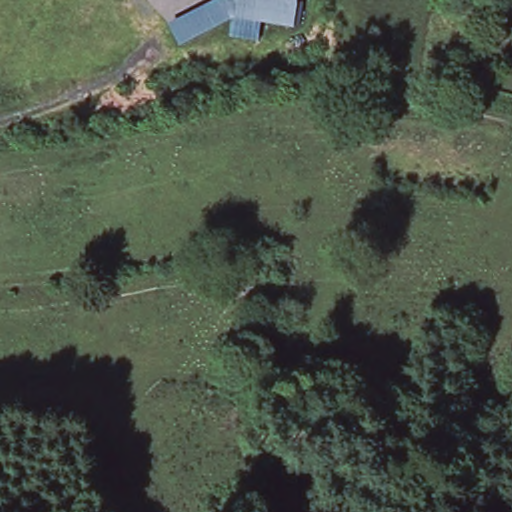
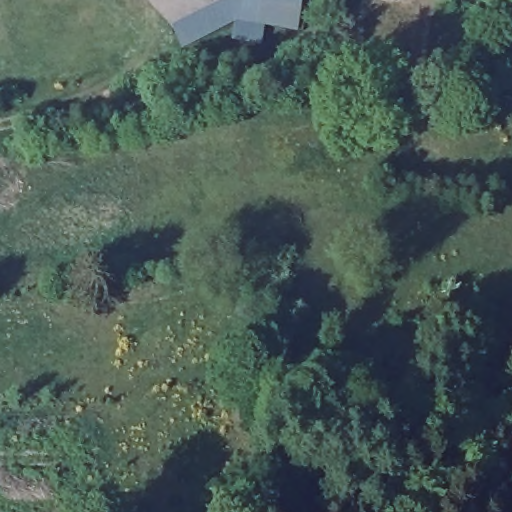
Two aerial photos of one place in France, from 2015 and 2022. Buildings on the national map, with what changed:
unchanged [(237,19),(182,47),(173,26),(226,0),(303,0),(297,30),(237,19)]

